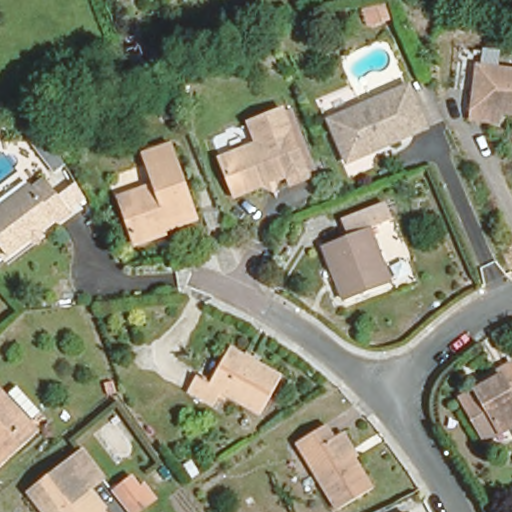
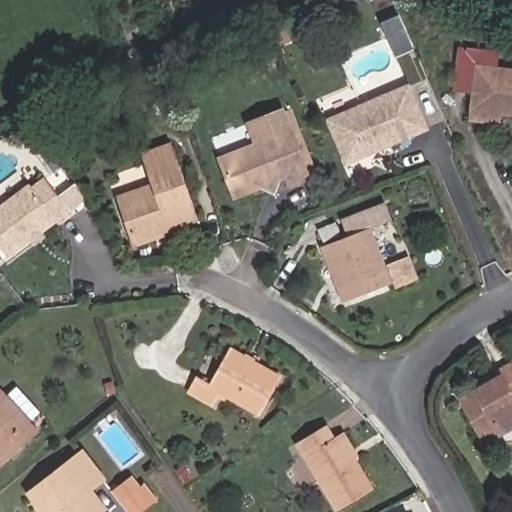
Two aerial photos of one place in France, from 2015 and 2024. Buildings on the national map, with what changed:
unchanged [(388,16),(370,23),(364,9),(381,1),(388,16)]
unchanged [(147,38),(153,41),(155,46),(184,35),(189,50),(161,61),(136,70),(126,46),(147,38)]
unchanged [(478,107),(467,106),(468,98),(473,54),(512,59),(512,103),(492,101),(491,109),(478,107)]
unchanged [(347,151),(328,108),(409,73),(428,115),(378,137),(370,141),(347,151)]
unchanged [(273,173),(267,171),(262,169),(235,179),(222,142),(258,129),(260,128),(258,121),(256,122),(255,120),(250,106),(285,94),(291,113),(310,161),(292,167),(289,159),(278,163),(276,168),(273,173)]
unchanged [(109,194),(144,182),(134,153),(162,144),(187,216),(145,231),(146,236),(125,242),(109,194)]
unchanged [(22,231),(0,247),(0,193),(19,180),(20,182),(33,173),(59,208),(45,217),(44,215),(35,222),(35,229),(25,235),(22,231)]
unchanged [(313,248),(340,238),(334,224),(377,207),(383,222),(358,232),(380,286),(335,303),(313,248)]
unchanged [(190,373),(205,380),(224,346),(275,373),(256,407),(217,386),(210,399),(184,385),(190,373)]
unchanged [(512,376),(512,387),(502,392),(512,408),(512,411),(473,433),(450,391),(465,383),(462,377),(487,364),(501,356),(512,376)]
unchanged [(0,391),(3,388),(25,412),(20,417),(27,425),(0,450),(0,391)]
unchanged [(296,441),(325,424),(333,438),(339,434),(370,488),(335,508),(296,441)]
unchanged [(114,484),(130,469),(140,482),(145,477),(157,495),(136,512),(125,512),(115,497),(107,503),(113,512),(50,512),(27,485),(83,444),(114,484)]

